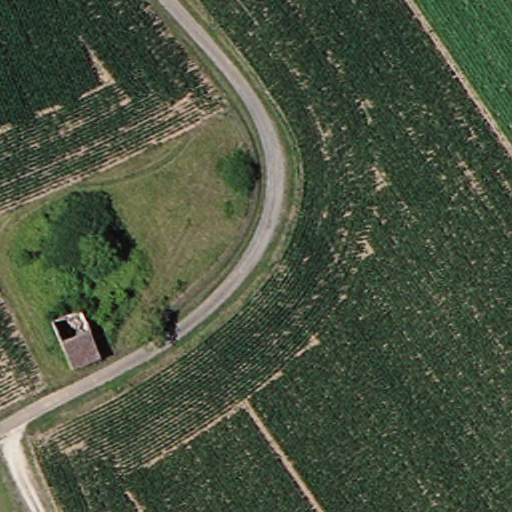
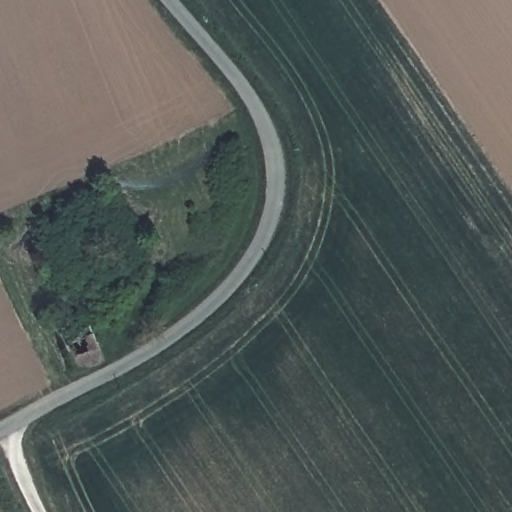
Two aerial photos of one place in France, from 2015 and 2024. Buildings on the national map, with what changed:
unchanged [(59,326),(50,306),(78,295),(86,315),(106,363),(80,375),(59,326)]

